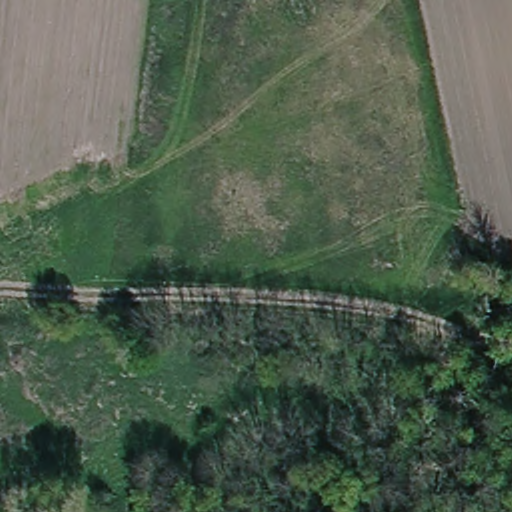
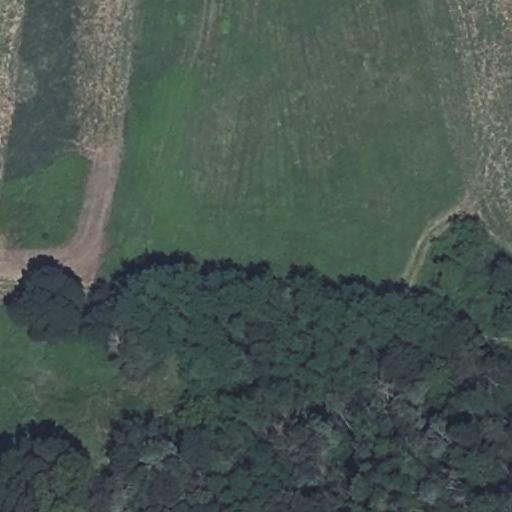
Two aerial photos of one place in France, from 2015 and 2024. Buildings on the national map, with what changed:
unchanged [(492,303),(486,270),(500,267),(507,300),(492,303)]

